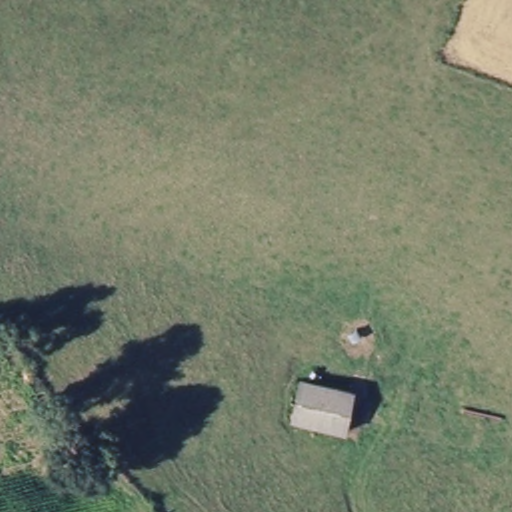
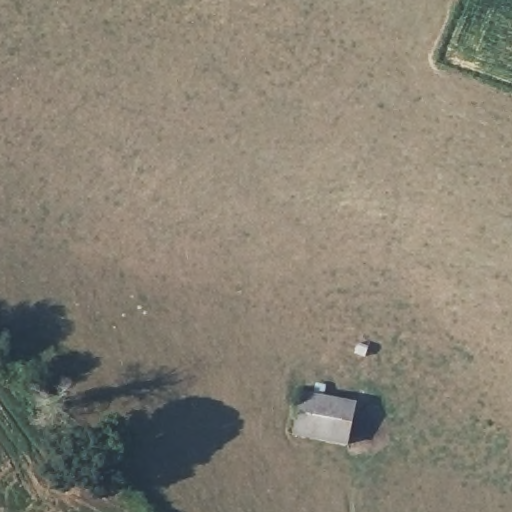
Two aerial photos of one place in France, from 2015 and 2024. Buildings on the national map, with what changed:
unchanged [(350,399),(351,443),(295,441),(295,397),(350,399)]

